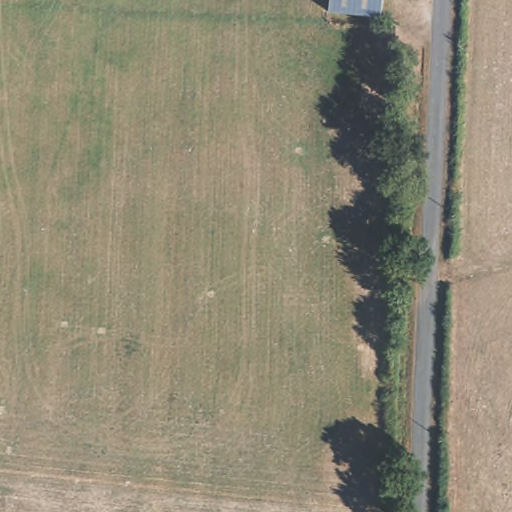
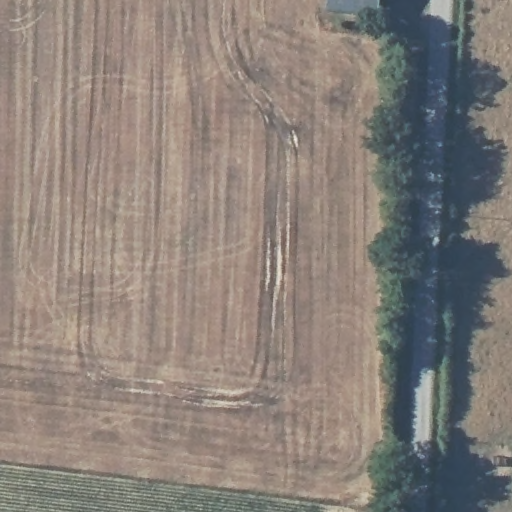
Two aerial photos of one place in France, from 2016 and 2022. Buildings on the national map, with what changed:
unchanged [(323,12),(324,0),(377,0),(375,17),(323,12)]

